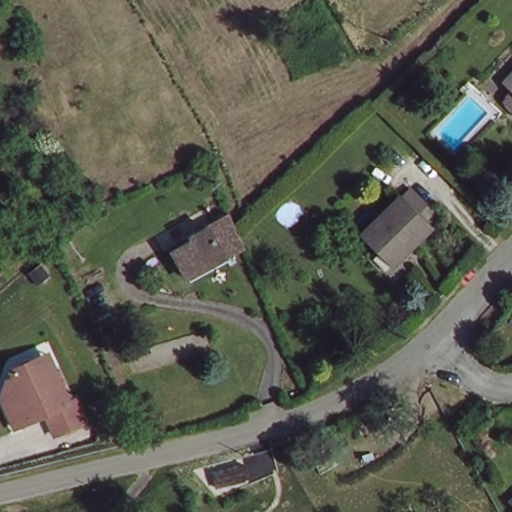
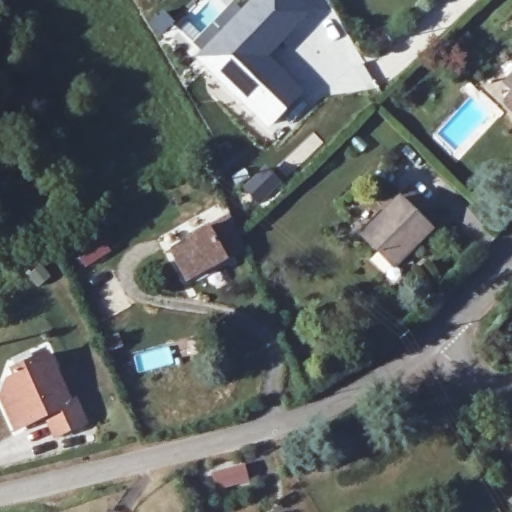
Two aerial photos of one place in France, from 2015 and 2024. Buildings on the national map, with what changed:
new [(306,90),(269,128),(197,59),(251,0),(300,0),(312,11),(271,56),(306,90)]
unchanged [(512,91),(512,95),(510,93),(512,91)]
unchanged [(512,100),(512,120),(502,111),(512,100)]
unchanged [(431,230),(396,267),(365,235),(399,201),(431,230)]
unchanged [(231,232),(240,256),(186,280),(170,250),(227,222),(231,232)]
unchanged [(19,426),(5,395),(11,379),(18,376),(15,369),(37,358),(52,352),(58,366),(74,401),(79,398),(88,420),(59,433),(50,413),(36,419),(19,426)]
unchanged [(270,470),(235,480),(231,467),(266,456),(270,470)]

